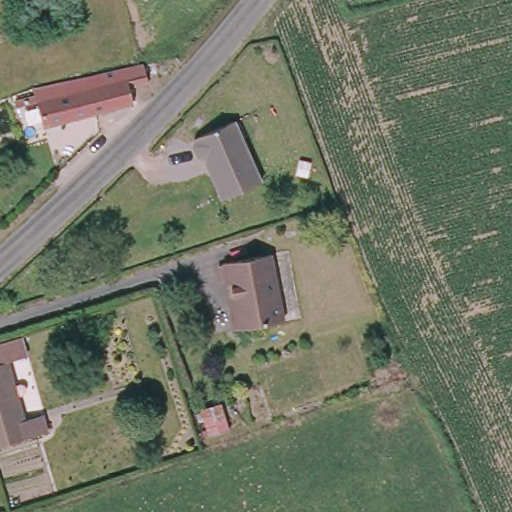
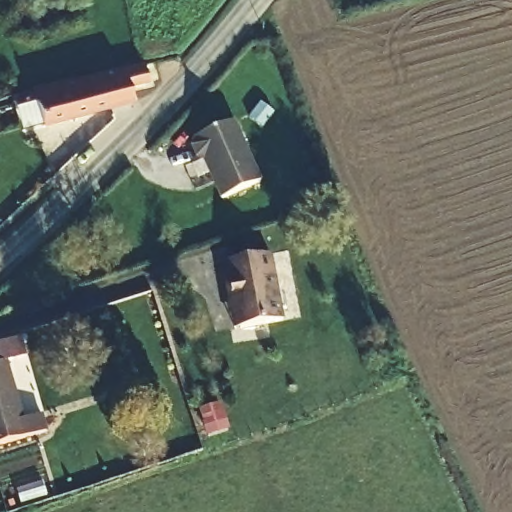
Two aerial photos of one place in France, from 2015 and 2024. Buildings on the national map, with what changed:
unchanged [(153,66),(156,78),(144,81),(146,87),(128,91),(131,107),(42,131),(32,93),(153,66)]
unchanged [(263,180),(220,199),(204,160),(196,159),(190,144),(194,137),(236,119),(263,180)]
unchanged [(228,300),(223,261),(271,254),(280,321),(238,327),(231,328),(228,300)]
unchanged [(25,337),(29,358),(6,365),(0,367),(0,344),(25,337)]
unchanged [(6,365),(23,424),(30,422),(35,438),(0,449),(0,367),(6,365)]

